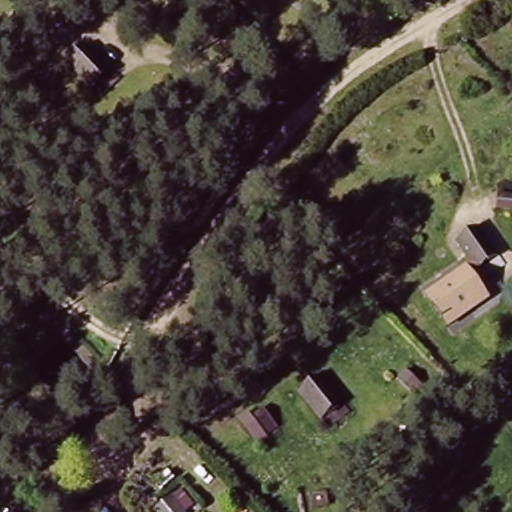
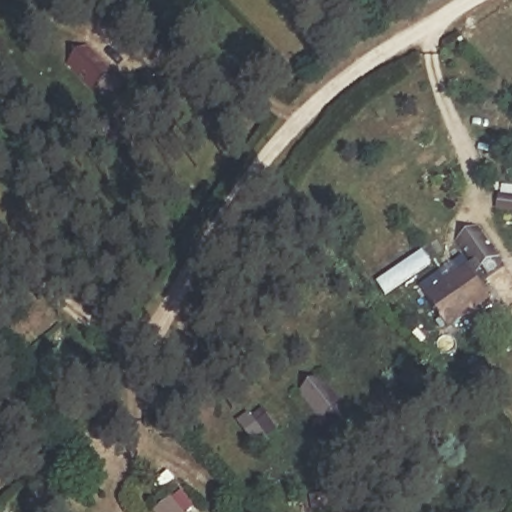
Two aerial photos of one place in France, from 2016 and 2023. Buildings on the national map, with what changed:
unchanged [(87,45),(112,71),(93,89),(69,63),(87,45)]
unchanged [(512,208),(504,207),(505,194),(512,194),(512,208)]
unchanged [(483,225),(503,255),(482,269),(462,239),(483,225)]
unchanged [(448,328),(428,298),(469,269),(490,298),(448,328)]
unchanged [(320,376),(342,406),(322,421),(300,391),(320,376)]
unchanged [(264,410),(272,422),(262,430),(253,419),(264,410)]
unchanged [(176,495),(189,511),(188,512),(155,512),(176,495)]

